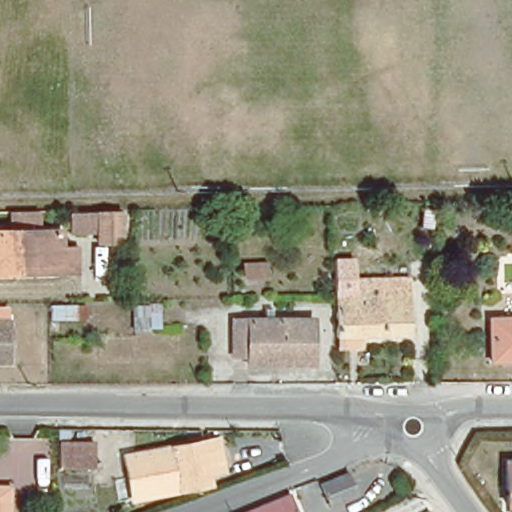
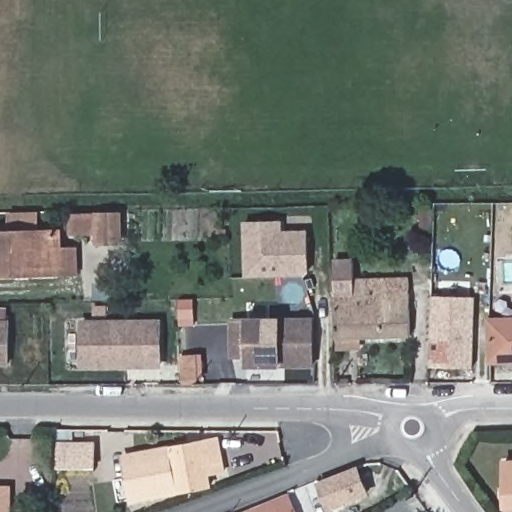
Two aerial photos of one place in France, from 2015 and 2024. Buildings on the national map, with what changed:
unchanged [(0,233),(11,233),(11,213),(27,213),(37,213),(37,232),(59,231),(59,254),(77,254),(77,271),(60,272),(16,273),(0,273),(0,233)]
unchanged [(97,215),(121,214),(121,243),(97,243),(97,232),(72,233),(72,216),(97,215)]
new [(279,221),(280,231),(305,230),(306,271),(301,275),(244,277),(242,222),(279,221)]
unchanged [(337,349),(337,339),(336,295),(335,278),(333,256),(353,255),(355,277),(356,285),(373,284),(373,280),(408,279),(411,336),(360,338),(360,348),(337,349)]
new [(433,298),(476,299),(474,367),(431,366),(433,298)]
unchanged [(313,366),(249,366),(249,356),(234,356),(233,320),(248,320),(264,320),(264,310),(272,310),(272,320),(312,320),(313,366)]
new [(162,319),(162,367),(82,368),(80,320),(162,319)]
unchanged [(492,361),(491,320),(512,320),(512,361),(492,361)]
unchanged [(0,323),(9,323),(7,363),(0,363),(0,323)]
unchanged [(132,503),(123,456),(202,441),(219,437),(226,473),(209,477),(211,488),(132,503)]
unchanged [(60,444),(95,446),(94,468),(59,467),(60,444)]
unchanged [(347,472),(358,496),(330,508),(320,485),(347,472)]
unchanged [(10,512),(0,512),(0,489),(10,489),(10,512)]
unchanged [(247,512),(289,494),(296,512),(247,512)]

